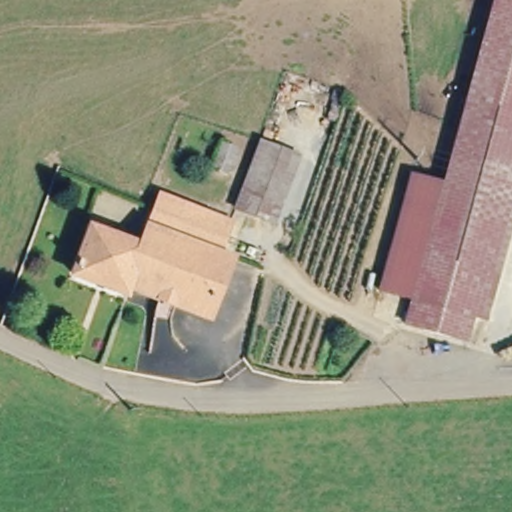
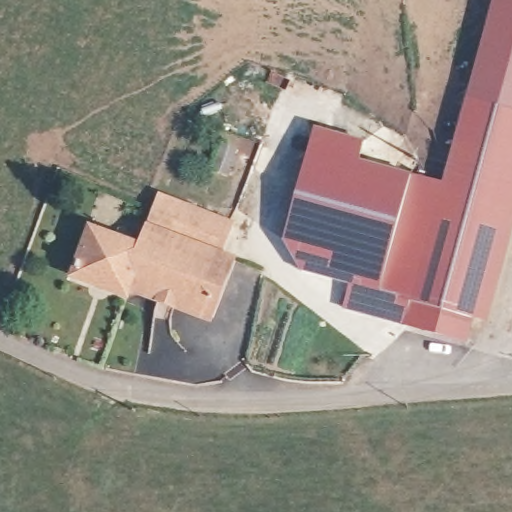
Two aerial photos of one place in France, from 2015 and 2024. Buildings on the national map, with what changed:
unchanged [(471,317),(465,341),(407,325),(488,0),(512,0),(512,156),(471,317)]
new [(360,159),(411,174),(442,182),(412,301),(378,291),(301,271),(285,241),(314,126),(365,139),(360,159)]
unchanged [(274,223),(235,210),(254,144),(294,157),(274,223)]
unchanged [(471,317),(512,156),(512,231),(488,321),(471,317)]
demolished [(380,293),(412,173),(441,180),(407,301),(380,293)]
unchanged [(90,238),(125,252),(134,232),(143,236),(157,196),(238,228),(223,266),(199,330),(119,299),(115,307),(70,288),(90,238)]

